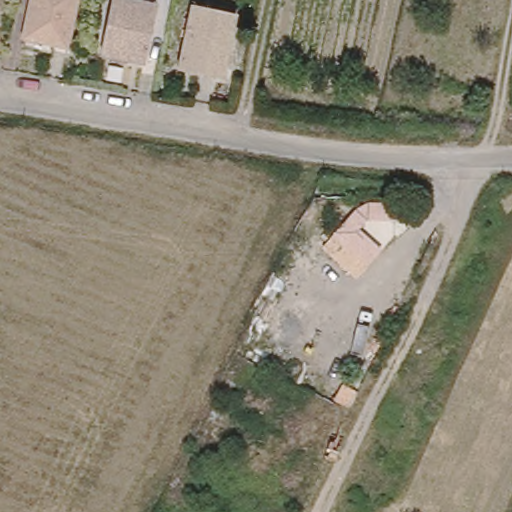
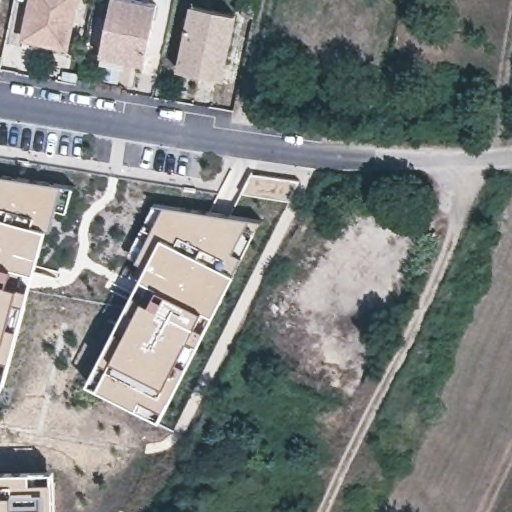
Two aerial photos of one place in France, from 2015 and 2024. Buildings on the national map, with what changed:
unchanged [(22,34),(30,0),(77,0),(68,44),(22,34)]
unchanged [(156,0),(144,59),(102,50),(112,0),(156,0)]
unchanged [(231,15),(219,68),(222,71),(220,78),(174,70),(188,5),(231,15)]
new [(75,185),(67,212),(56,209),(48,231),(5,384),(0,382),(0,173),(64,184),(75,185)]
unchanged [(323,249),(355,210),(367,204),(397,206),(396,221),(367,221),(360,229),(381,249),(357,279),(323,249)]
new [(251,220),(235,252),(244,257),(235,275),(161,416),(89,381),(149,266),(138,262),(166,205),(251,220)]
new [(56,512),(0,512),(0,470),(55,468),(56,512)]

